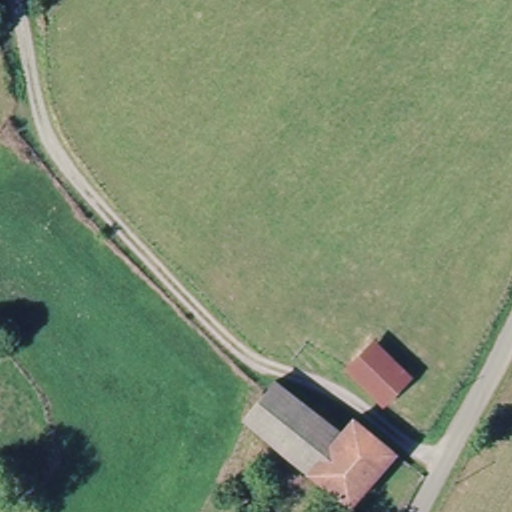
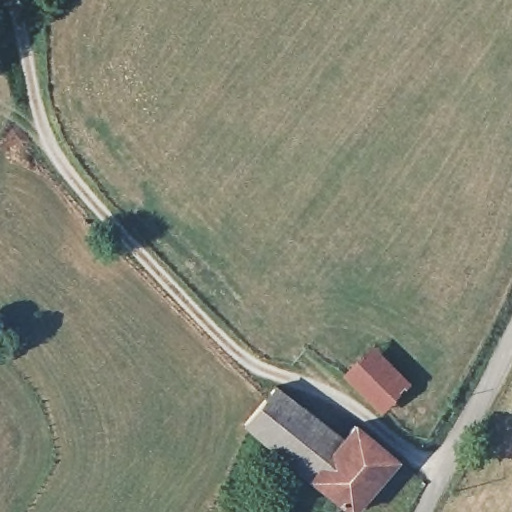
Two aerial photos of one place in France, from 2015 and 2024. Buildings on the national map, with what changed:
unchanged [(376,347),(411,379),(387,409),(367,394),(350,377),(376,347)]
unchanged [(285,393),(339,437),(353,424),(370,439),(400,463),(363,512),(351,512),(255,436),(251,433),(276,402),(285,393)]

